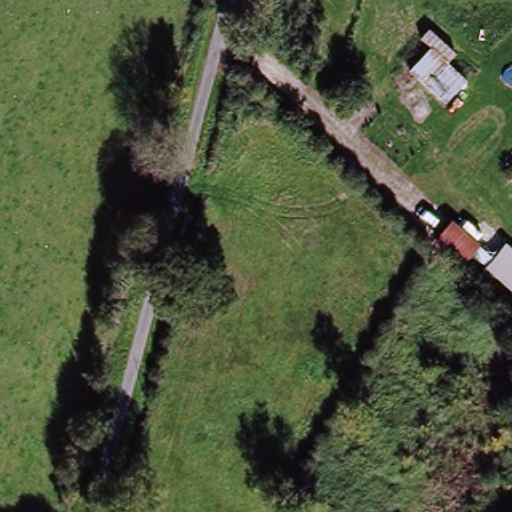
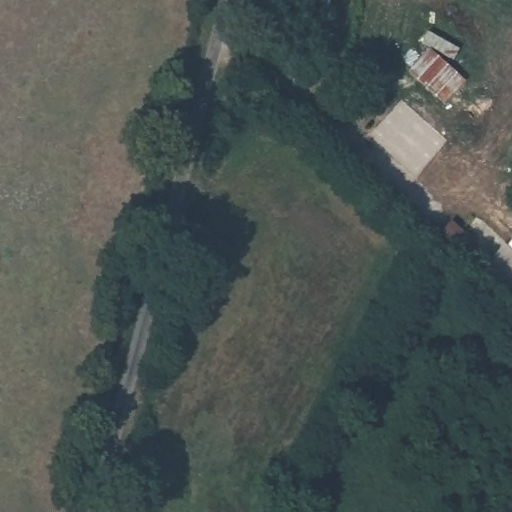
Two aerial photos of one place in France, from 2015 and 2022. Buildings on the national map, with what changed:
unchanged [(454,57),(449,65),(466,84),(446,106),(408,72),(430,49),(420,40),(429,31),(454,57)]
unchanged [(467,221),(484,237),(478,246),(493,259),(506,244),(512,250),(512,295),(469,258),(461,268),(434,244),(450,223),(459,230),(467,221)]

